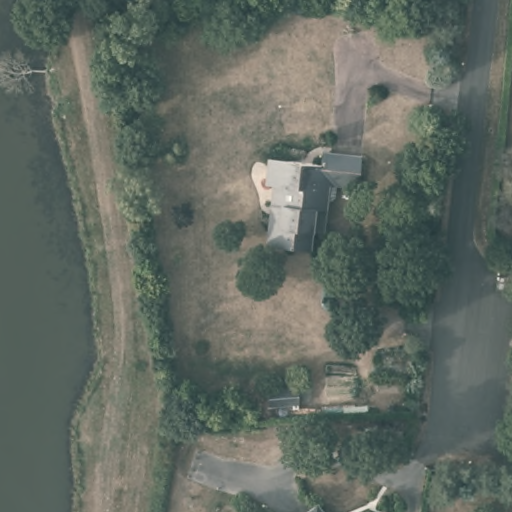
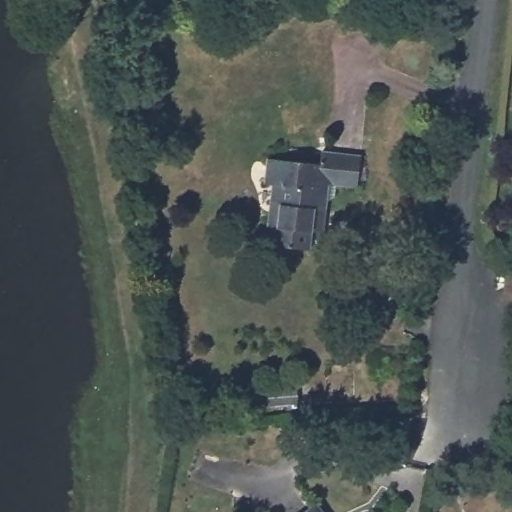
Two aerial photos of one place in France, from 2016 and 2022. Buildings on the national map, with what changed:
unchanged [(272,203),(274,184),(266,183),(269,157),(321,163),(323,150),(362,154),(358,186),(338,184),(337,195),(333,200),(328,200),(327,208),(325,233),(313,232),(311,250),(293,247),(267,244),(269,225),(272,203)]
unchanged [(270,388),(277,388),(298,386),(299,403),(279,405),(271,405),(270,388)]
unchanged [(417,416),(413,457),(391,455),(394,414),(417,416)]
unchanged [(323,512),(309,512),(318,505),(323,512)]

